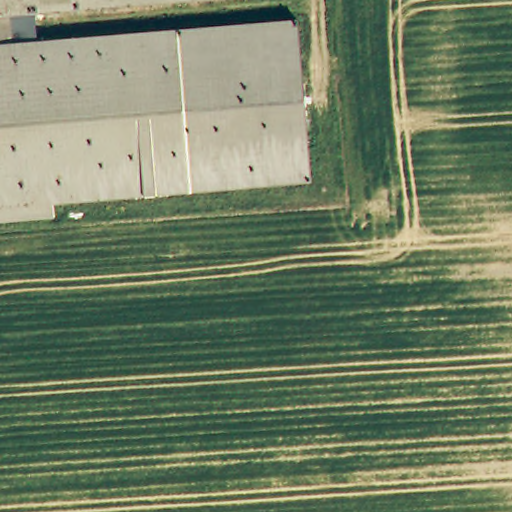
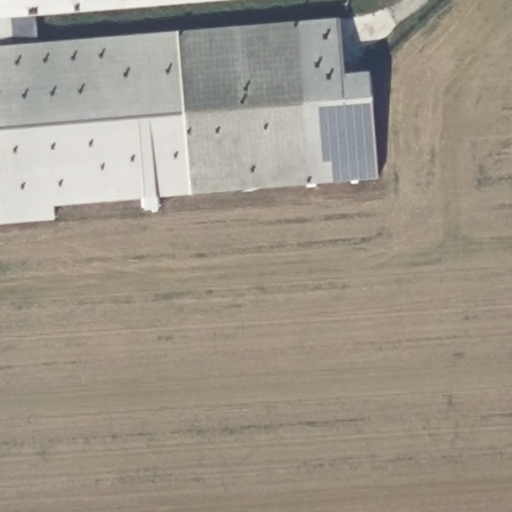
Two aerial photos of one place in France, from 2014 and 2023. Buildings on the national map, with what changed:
unchanged [(16,41),(301,20),(315,180),(52,200),(0,204),(0,0),(152,0),(14,11),(16,41)]
new [(337,16),(343,71),(368,69),(377,176),(315,180),(301,20),(337,16)]
unchanged [(54,213),(0,217),(0,204),(52,200),(54,213)]

